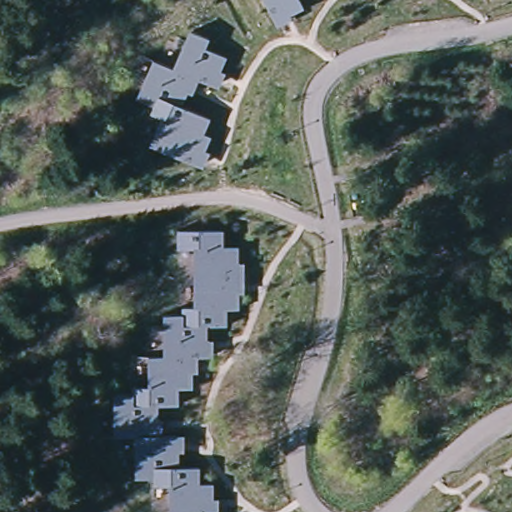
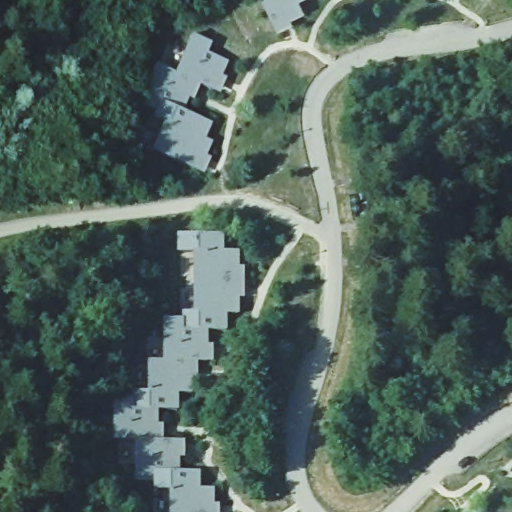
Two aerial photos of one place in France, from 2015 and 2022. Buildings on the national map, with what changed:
unchanged [(304,13),(292,19),(294,23),(277,31),(262,0),(300,0),(298,0),(304,13)]
unchanged [(205,139),(211,141),(205,154),(210,156),(202,175),(155,154),(164,128),(153,123),(157,114),(140,106),(155,65),(172,72),(188,34),(210,44),(206,54),(226,60),(215,89),(196,82),(185,113),(212,124),(205,139)]
unchanged [(172,489),(135,489),(137,439),(116,439),(115,399),(133,399),(133,392),(147,391),(148,362),(163,362),(163,319),(183,319),(183,312),(194,312),(194,253),(176,252),(175,232),(226,233),(225,252),(238,251),(239,267),(243,267),(244,300),(239,299),(240,314),(228,314),(227,331),(210,329),(210,344),(213,363),(197,363),(197,380),(193,379),(193,394),(178,394),(178,411),(159,413),(159,426),(163,426),(163,442),(185,443),(185,475),(202,474),(202,491),(215,489),(215,512),(173,512),(172,489)]

